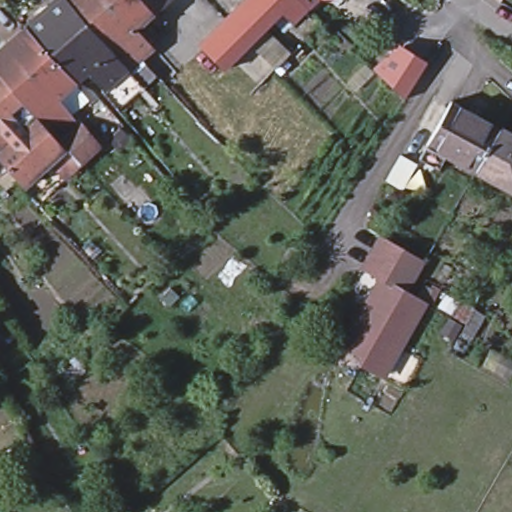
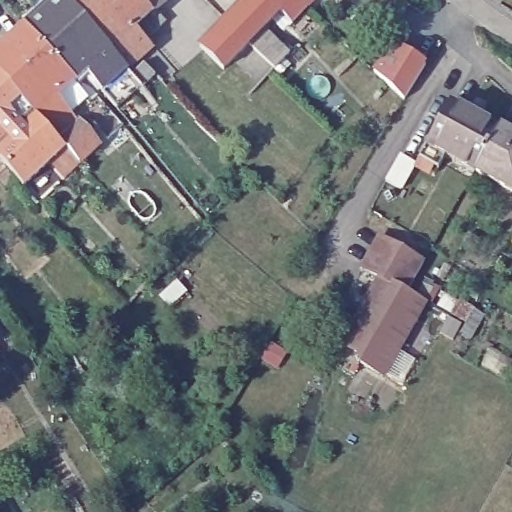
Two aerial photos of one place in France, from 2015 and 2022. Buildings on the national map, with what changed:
unchanged [(98,87),(82,70),(69,81),(19,26),(43,5),(48,0),(160,0),(151,9),(161,20),(141,37),(148,43),(136,53),(155,74),(138,88),(119,69),(98,87)]
unchanged [(274,67),(248,41),(223,67),(199,43),(224,17),(241,1),(246,6),(252,0),(314,0),(309,6),(294,21),(281,9),(263,26),(289,52),(274,67)]
unchanged [(69,81),(53,95),(75,117),(96,97),(118,123),(101,138),(107,145),(97,154),(91,147),(74,162),(59,145),(74,162),(60,176),(45,159),(38,166),(14,137),(35,118),(33,115),(18,127),(11,133),(5,139),(0,143),(0,43),(19,26),(69,81)]
unchanged [(427,64),(404,99),(374,70),(399,46),(427,64)]
unchanged [(74,86),(81,80),(82,80),(93,93),(87,99),(74,86)]
unchanged [(437,170),(420,161),(427,149),(451,105),(468,115),(499,132),(476,174),(475,175),(447,160),(440,172),(437,170)]
unchanged [(499,132),(512,138),(512,193),(476,174),(499,132)]
unchanged [(0,149),(14,137),(38,166),(18,184),(0,165),(0,149)]
unchanged [(401,159),(407,162),(416,167),(416,168),(401,193),(393,188),(386,185),(401,159)]
unchanged [(376,283),(359,272),(359,271),(375,242),(388,250),(418,268),(403,295),(422,305),(377,379),(356,367),(354,357),(344,351),(338,347),(347,332),(356,332),(361,321),(356,317),(376,283)]

